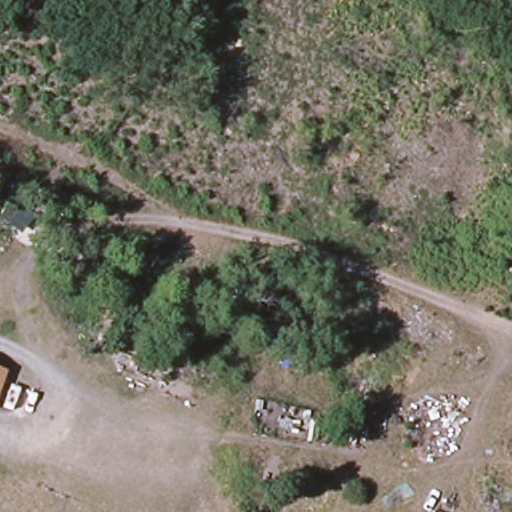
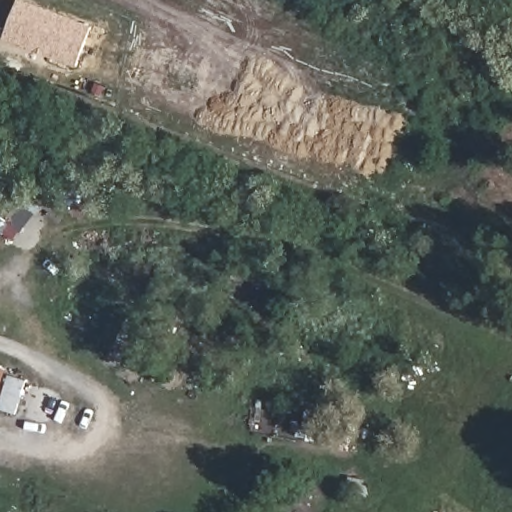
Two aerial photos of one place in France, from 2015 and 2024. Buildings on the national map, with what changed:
new [(20,0),(94,29),(79,68),(5,38),(20,0)]
demolished [(510,415),(512,409),(512,416),(510,415)]

